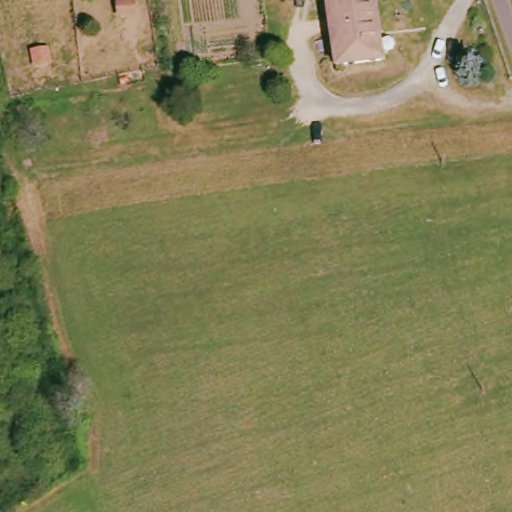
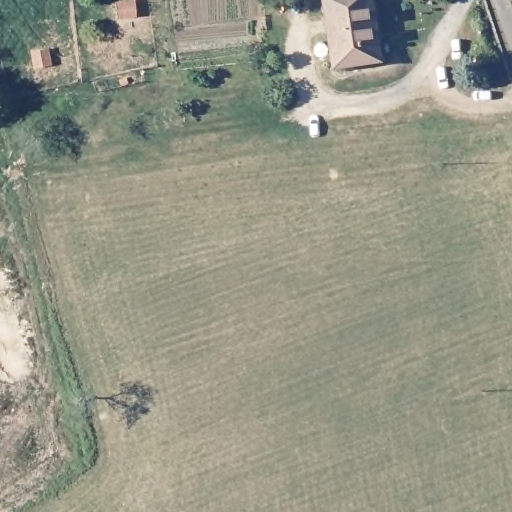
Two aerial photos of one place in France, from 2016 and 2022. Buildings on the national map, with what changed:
unchanged [(327,68),(323,0),(368,0),(373,65),(327,68)]

